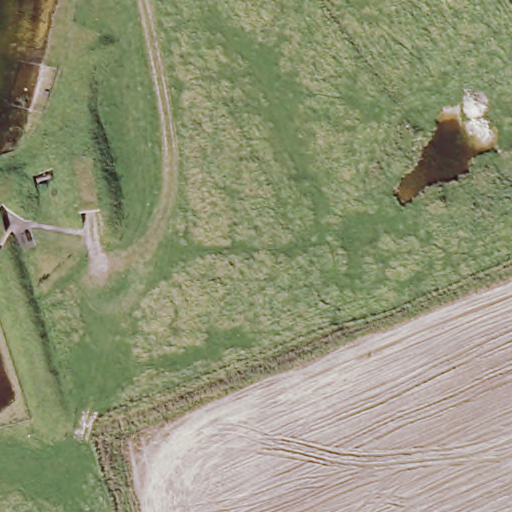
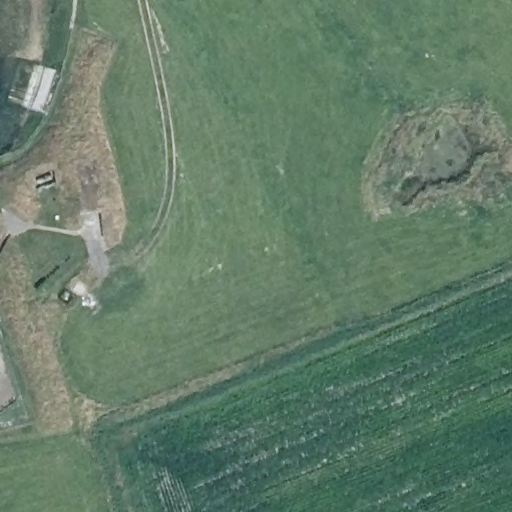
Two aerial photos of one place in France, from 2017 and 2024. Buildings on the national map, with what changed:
unchanged [(69,160),(92,156),(101,212),(78,214),(69,160)]

